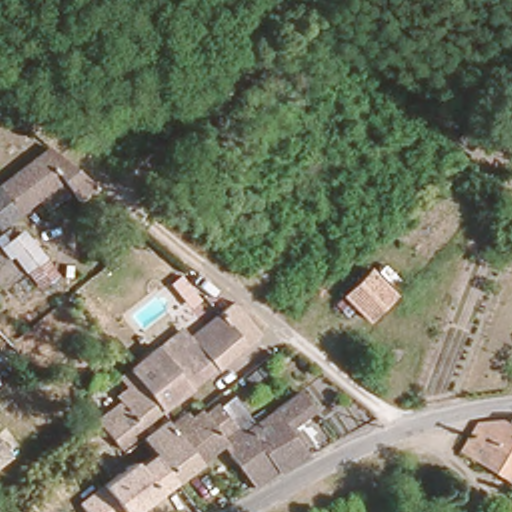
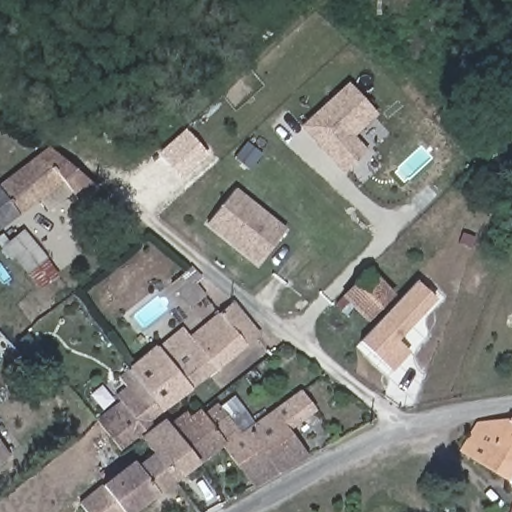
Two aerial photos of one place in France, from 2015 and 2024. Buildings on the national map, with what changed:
new [(300,127),(348,82),(378,116),(355,136),(368,152),(343,175),(300,127)]
new [(186,128),(210,156),(182,180),(158,152),(186,128)]
unchanged [(37,198),(0,225),(0,185),(51,149),(96,187),(79,202),(71,192),(47,211),(37,198)]
new [(206,226),(236,188),(287,229),(257,267),(206,226)]
unchanged [(35,247),(41,243),(55,262),(38,275),(24,257),(22,257),(17,262),(9,251),(16,246),(27,238),(35,247)]
new [(170,283),(193,267),(204,279),(197,283),(207,297),(190,309),(170,283)]
unchanged [(393,297),(368,321),(342,295),(368,270),(393,297)]
unchanged [(159,342),(165,352),(236,299),(262,334),(163,407),(132,365),(159,342)]
unchanged [(163,407),(140,424),(117,392),(126,385),(119,376),(132,365),(163,407)]
unchanged [(242,431),(295,395),(301,392),(310,406),(286,422),(310,455),(280,472),(279,471),(252,485),(222,446),(226,443),(242,431)]
unchanged [(172,419),(187,408),(191,413),(200,407),(204,412),(219,401),(240,428),(242,431),(226,443),(224,441),(197,460),(192,452),(169,422),(172,419)]
unchanged [(166,417),(169,422),(192,452),(197,460),(172,478),(140,436),(166,417)]
unchanged [(458,448),(471,430),(474,424),(512,417),(512,465),(505,477),(458,448)]
unchanged [(172,478),(127,512),(87,512),(67,485),(116,447),(119,452),(140,436),(172,478)]
unchanged [(6,452),(0,457),(0,445),(6,452)]

